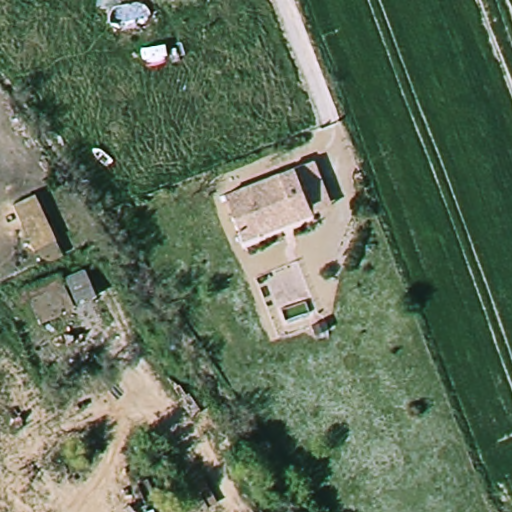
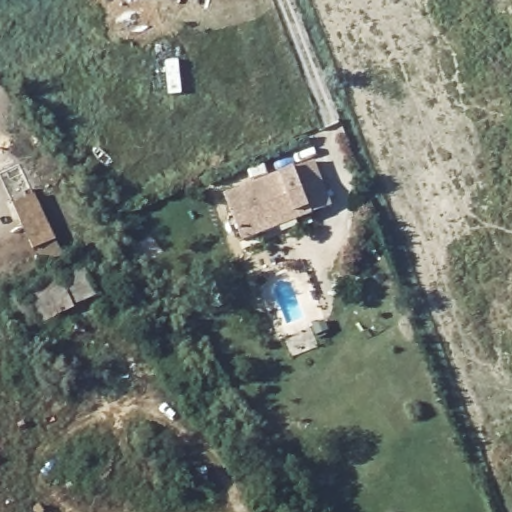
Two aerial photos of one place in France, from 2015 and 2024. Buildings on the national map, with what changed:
unchanged [(248,241),(230,195),(297,169),(315,213),(248,241)]
unchanged [(32,243),(14,206),(35,195),(56,233),(32,243)]
unchanged [(31,301),(22,305),(18,294),(53,278),(56,286),(86,272),(98,298),(43,324),(31,301)]

